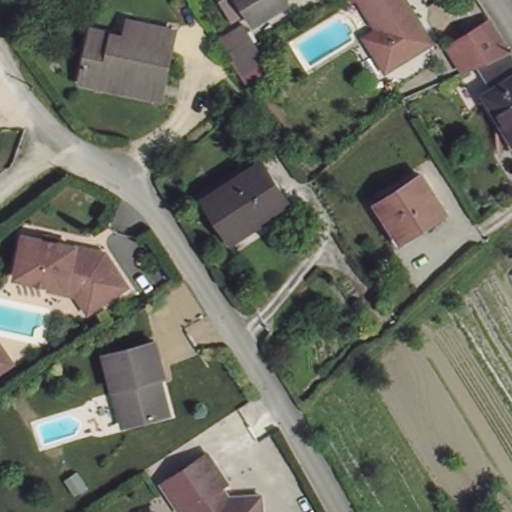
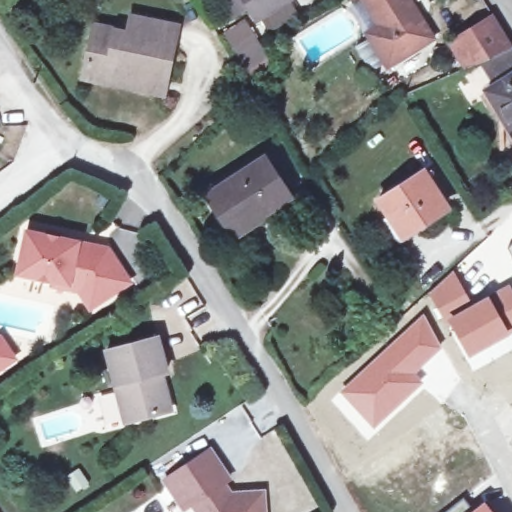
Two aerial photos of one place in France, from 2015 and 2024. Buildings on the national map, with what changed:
unchanged [(291,5),(258,26),(241,0),(289,0),(291,5)]
unchanged [(429,42),(385,65),(368,30),(353,0),(408,0),(429,42)]
unchanged [(464,67),(445,39),(492,11),(499,22),(512,44),(512,48),(489,66),(502,85),(484,97),(464,67)]
unchanged [(79,82),(90,28),(124,36),(128,20),(177,30),(168,80),(108,67),(104,87),(79,82)]
unchanged [(484,97),(502,85),(489,66),(512,48),(512,136),(484,97)]
unchanged [(271,68),(254,77),(250,80),(242,67),(263,54),(271,68)]
unchanged [(168,80),(163,100),(104,87),(108,67),(168,80)]
unchanged [(221,226),(203,195),(260,161),(284,199),(246,224),(227,236),(221,226)]
unchanged [(442,212),(401,238),(379,200),(423,174),(442,212)]
unchanged [(101,247),(124,282),(85,306),(70,285),(14,273),(21,232),(101,247)]
new [(512,244),(512,252),(509,247),(512,244)]
new [(454,270),(473,302),(444,320),(427,293),(454,270)]
new [(473,302),(509,283),(512,288),(512,333),(469,358),(444,320),(473,302)]
new [(424,313),(442,346),(416,372),(424,382),(373,430),(338,391),(424,313)]
unchanged [(0,337),(15,354),(0,364),(0,337)]
unchanged [(166,379),(155,380),(163,415),(124,423),(109,353),(157,342),(166,379)]
demolished [(416,512),(351,395),(372,382),(446,512),(416,512)]
unchanged [(220,484),(233,505),(263,503),(263,512),(194,512),(189,505),(181,510),(161,478),(206,447),(226,480),(220,484)]
new [(495,512),(468,512),(484,499),(495,512)]

